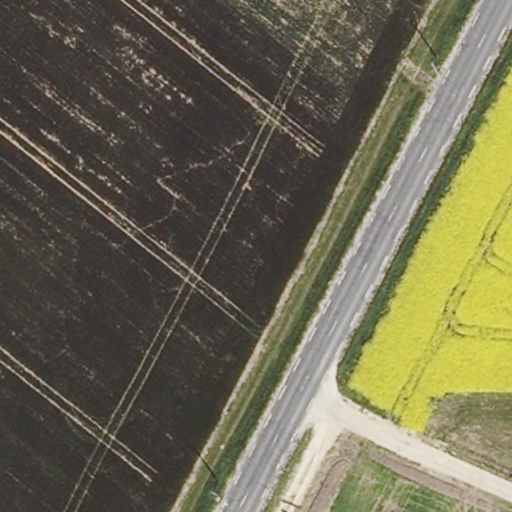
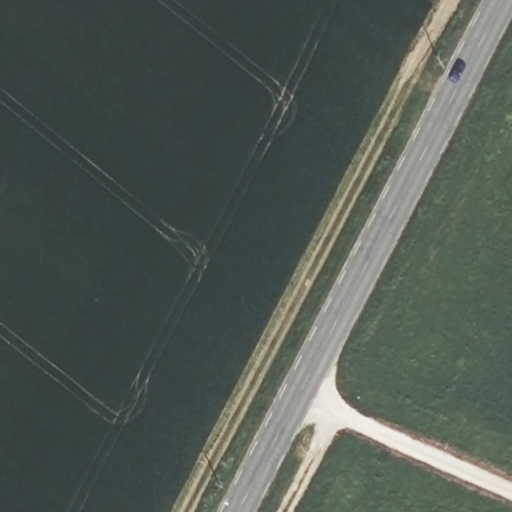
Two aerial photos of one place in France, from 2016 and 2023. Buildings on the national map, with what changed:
[]

